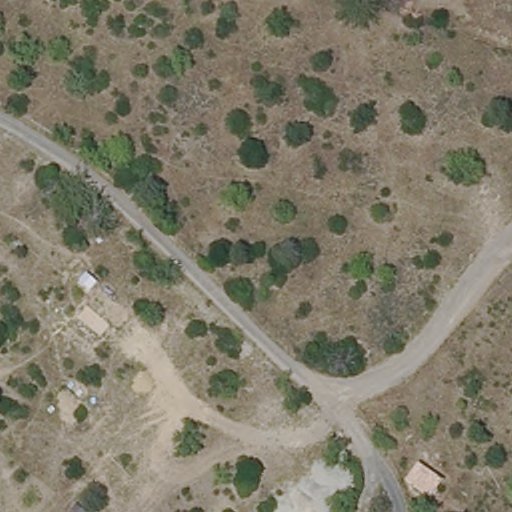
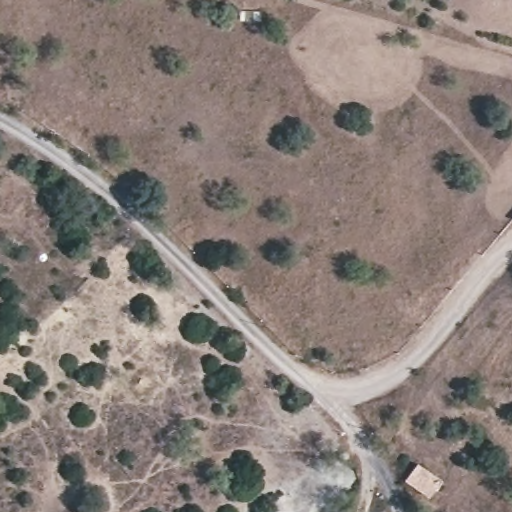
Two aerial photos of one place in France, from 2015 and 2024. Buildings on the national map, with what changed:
unchanged [(407,479),(419,463),(441,481),(429,498),(407,479)]

